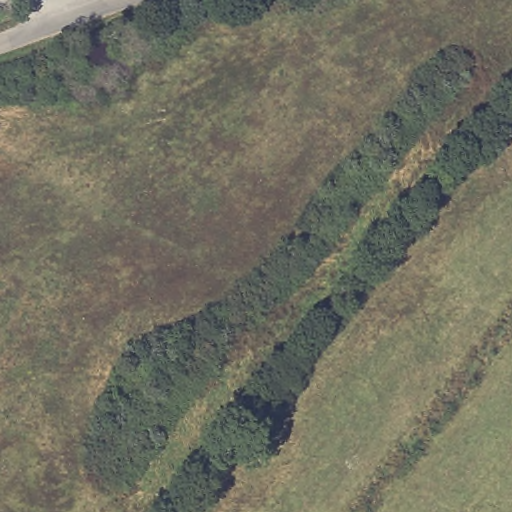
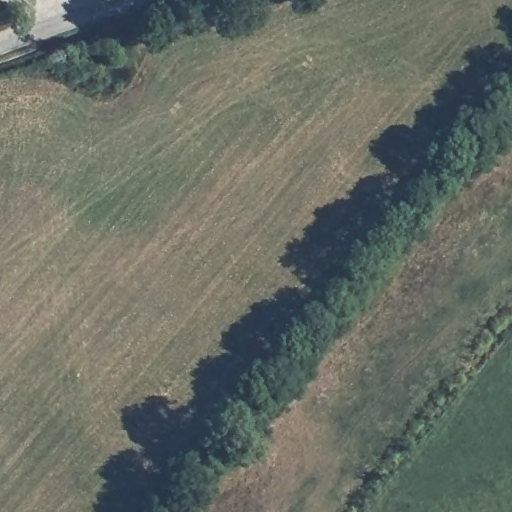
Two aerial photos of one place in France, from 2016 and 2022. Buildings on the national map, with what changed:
[]

